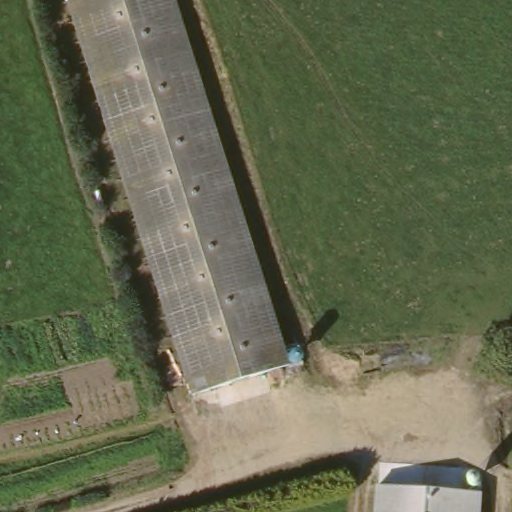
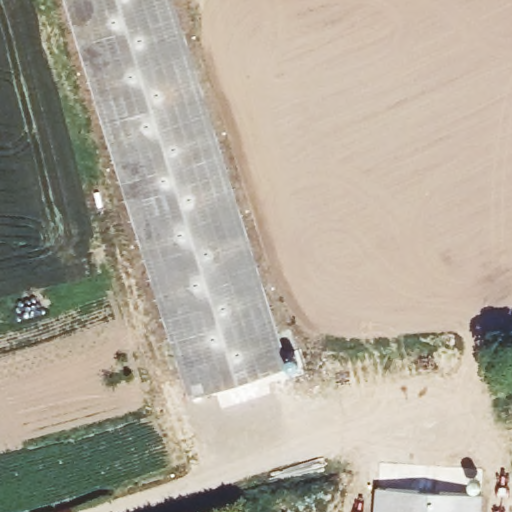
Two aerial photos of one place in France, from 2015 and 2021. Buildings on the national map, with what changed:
unchanged [(178,0),(289,361),(194,392),(70,0),(178,0)]
unchanged [(484,488),(483,512),(374,512),(377,480),(484,488)]

